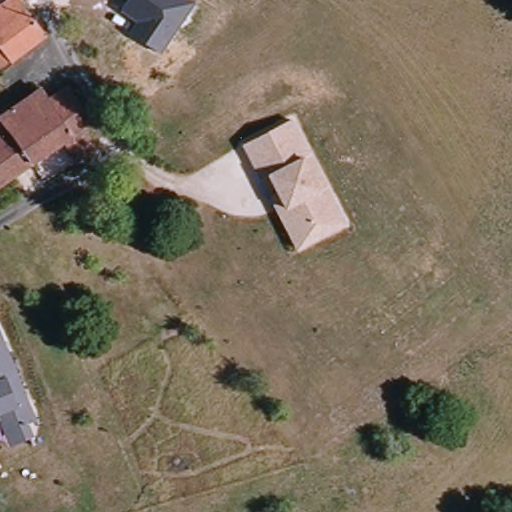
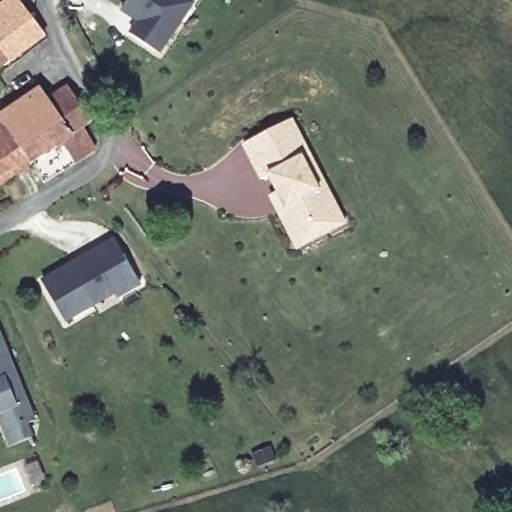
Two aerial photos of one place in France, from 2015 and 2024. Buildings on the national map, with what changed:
unchanged [(56,41),(4,72),(0,65),(0,9),(14,0),(32,0),(46,16),(47,21),(56,41)]
unchanged [(163,56),(130,36),(141,21),(125,10),(131,0),(196,0),(198,1),(163,56)]
unchanged [(77,137),(0,189),(0,120),(47,90),(56,101),(80,87),(100,121),(92,127),(106,150),(87,161),(77,137)]
unchanged [(298,251),(270,196),(277,193),(270,177),(262,181),(243,145),(295,119),(348,224),(298,251)]
new [(44,282),(115,240),(141,287),(120,301),(117,295),(67,324),(44,282)]
unchanged [(37,421),(30,425),(35,437),(11,447),(0,422),(0,327),(37,421)]

